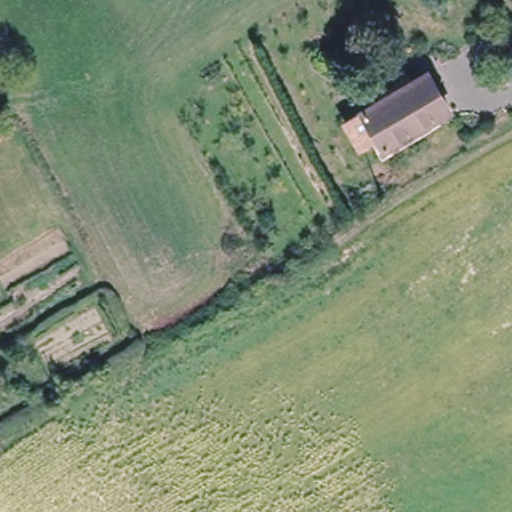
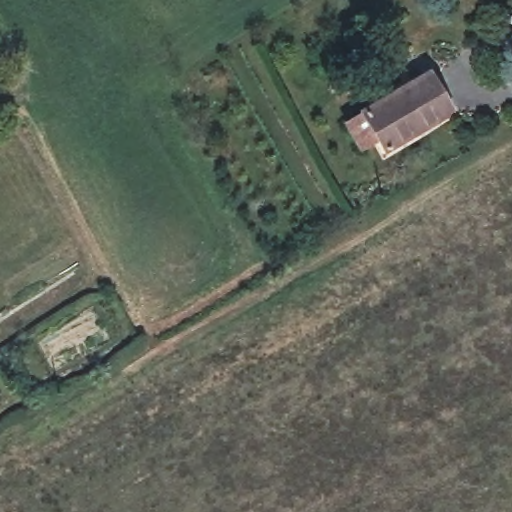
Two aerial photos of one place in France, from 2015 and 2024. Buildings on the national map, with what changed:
unchanged [(454,113),(382,153),(365,164),(339,123),(356,109),(425,66),(454,113)]

